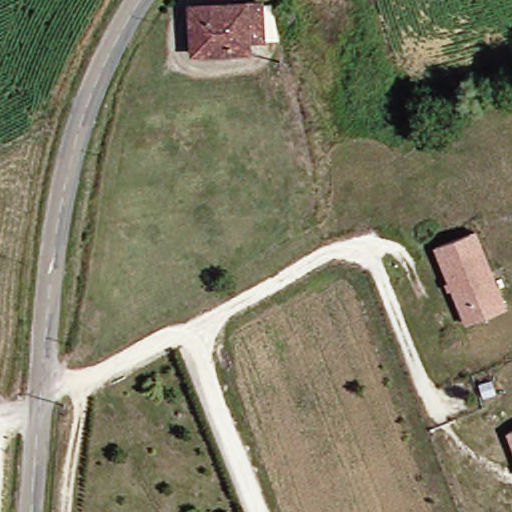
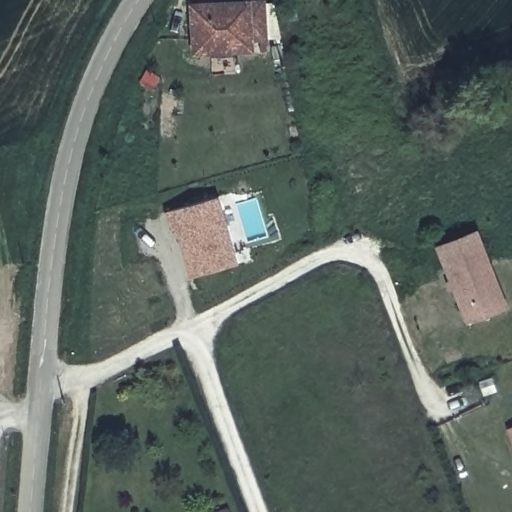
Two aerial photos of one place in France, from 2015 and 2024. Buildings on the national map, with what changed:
unchanged [(210,0),(247,0),(250,29),(238,30),(238,40),(188,45),(183,3),(210,0)]
new [(166,212),(216,197),(236,265),(186,279),(166,212)]
unchanged [(500,309),(493,312),(462,325),(429,249),(463,234),(468,232),(500,309)]
unchanged [(512,431),(512,464),(501,435),(512,431)]

